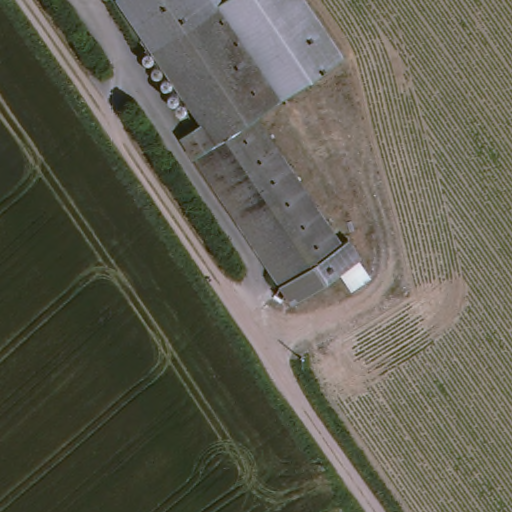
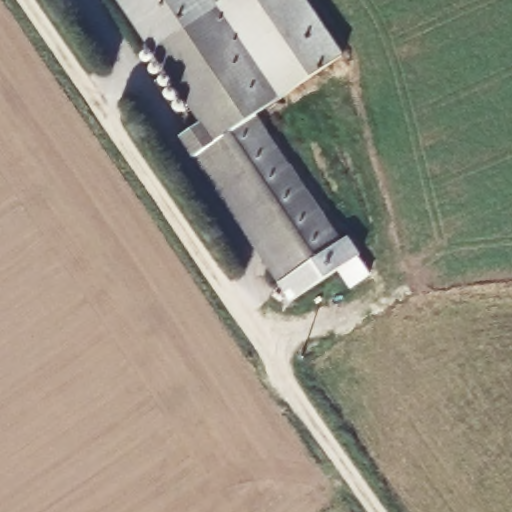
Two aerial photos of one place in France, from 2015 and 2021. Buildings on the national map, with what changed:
unchanged [(184,142),(204,127),(119,3),(123,0),(212,0),(215,4),(284,106),(259,125),(343,249),(353,242),(366,261),(297,307),(184,142)]
unchanged [(215,4),(220,0),(309,0),(346,53),(281,100),(215,4)]

